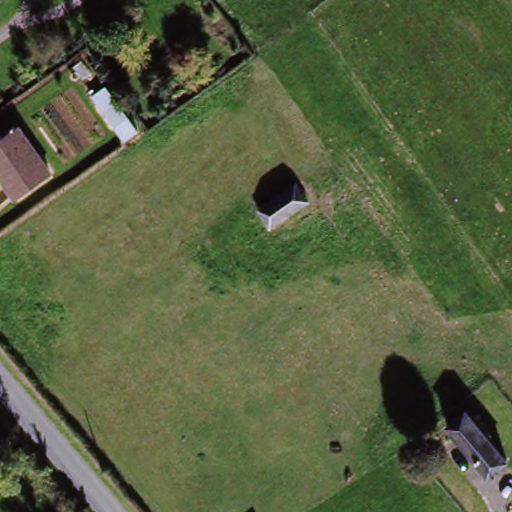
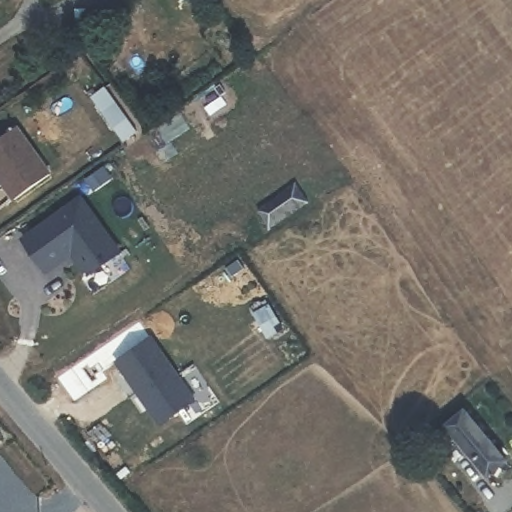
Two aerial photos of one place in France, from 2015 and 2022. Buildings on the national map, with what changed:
unchanged [(111,78),(145,127),(121,144),(85,90),(111,78)]
unchanged [(0,138),(15,126),(49,171),(17,196),(0,174),(0,138)]
unchanged [(310,201),(268,229),(255,211),(297,182),(310,201)]
new [(81,196),(122,253),(92,274),(82,273),(70,257),(46,275),(21,241),(81,196)]
new [(152,337),(197,401),(159,429),(115,365),(152,337)]
unchanged [(466,414),(507,465),(488,480),(447,429),(466,414)]

